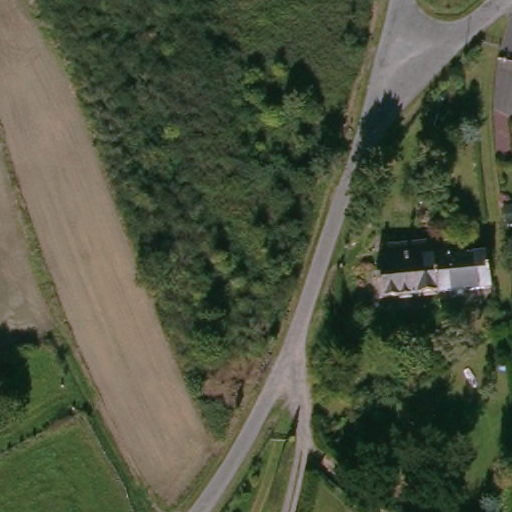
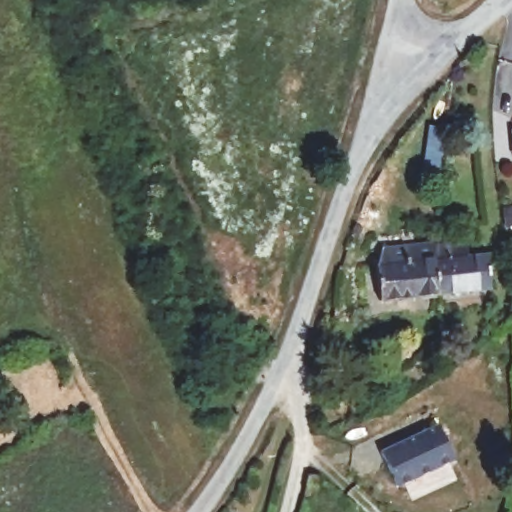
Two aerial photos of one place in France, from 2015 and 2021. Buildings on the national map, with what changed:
unchanged [(438,240),(470,236),(472,251),(491,249),(495,284),(443,290),(438,240)]
unchanged [(384,297),(380,261),(386,243),(437,238),(438,240),(443,290),(384,297)]
new [(438,426),(454,460),(396,487),(380,453),(438,426)]

